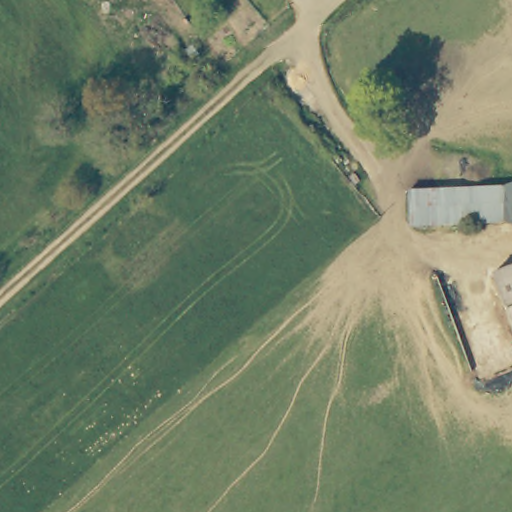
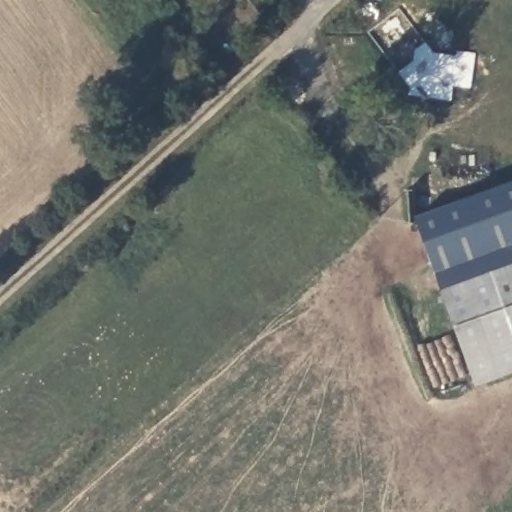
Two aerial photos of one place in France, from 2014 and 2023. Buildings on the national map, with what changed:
unchanged [(509,222),(507,189),(512,187),(512,224),(509,222)]
demolished [(412,226),(411,193),(507,189),(509,222),(412,226)]
new [(509,222),(512,224),(512,265),(492,273),(512,327),(512,375),(475,389),(415,219),(507,189),(509,222)]
unchanged [(492,273),(512,265),(512,327),(492,273)]

